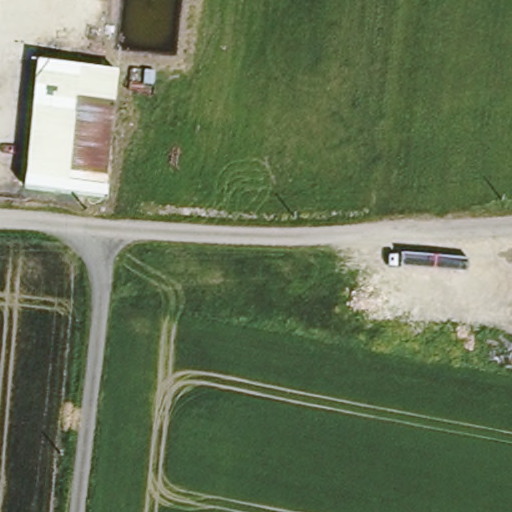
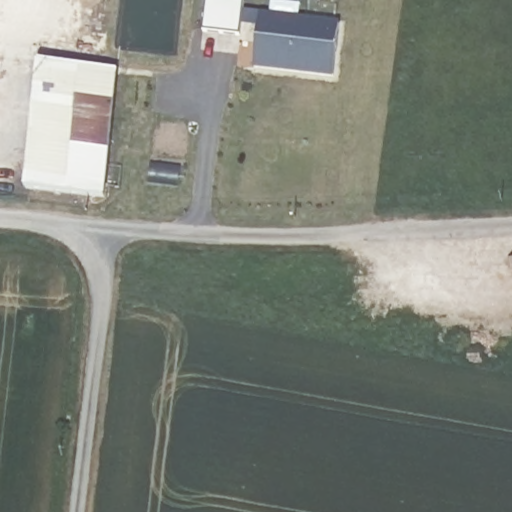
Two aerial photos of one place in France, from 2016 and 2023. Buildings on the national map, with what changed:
new [(239,0),(243,1),(240,37),(202,32),(206,0),(239,0)]
new [(260,14),(339,22),(335,79),(252,70),(260,14)]
unchanged [(37,65),(110,71),(98,185),(23,178),(37,65)]

